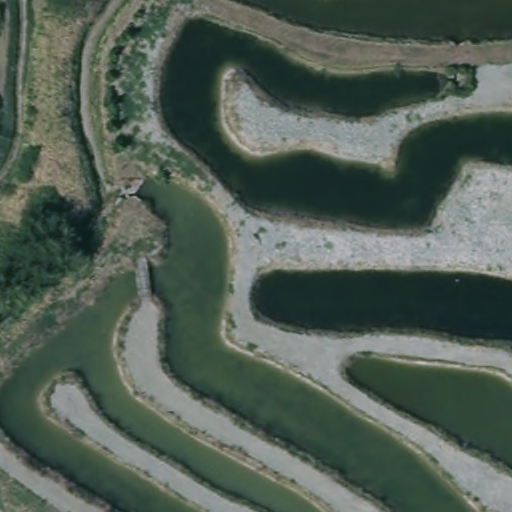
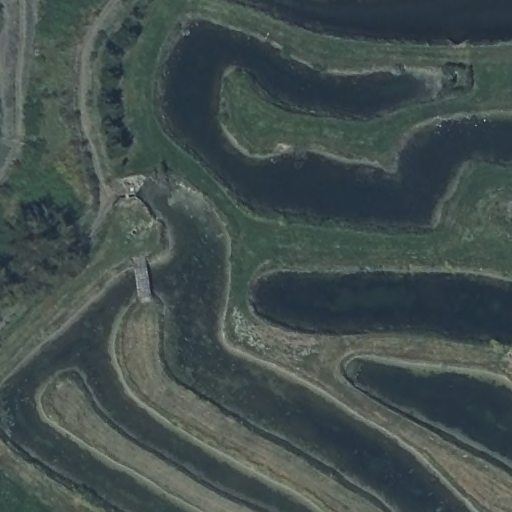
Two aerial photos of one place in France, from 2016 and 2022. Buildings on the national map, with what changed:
unchanged [(163,209),(158,232),(134,227),(139,203),(163,209)]

